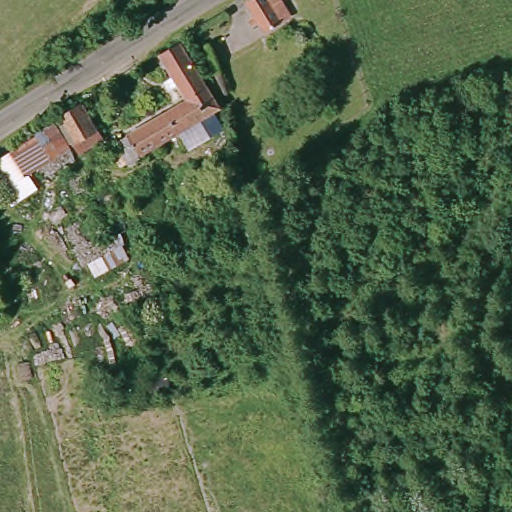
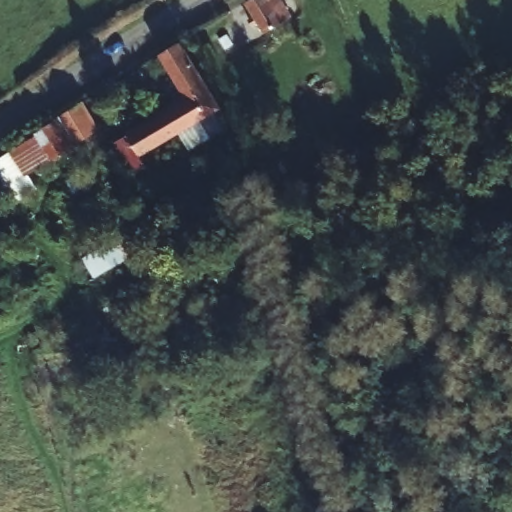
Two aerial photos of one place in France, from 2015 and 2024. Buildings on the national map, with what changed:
unchanged [(259,37),(247,4),(253,0),(282,0),(289,20),(259,37)]
unchanged [(188,106),(165,62),(188,48),(220,106),(222,114),(136,161),(139,167),(128,173),(115,147),(188,106)]
unchanged [(38,193),(10,210),(0,190),(0,161),(84,104),(98,133),(32,179),(38,193)]

